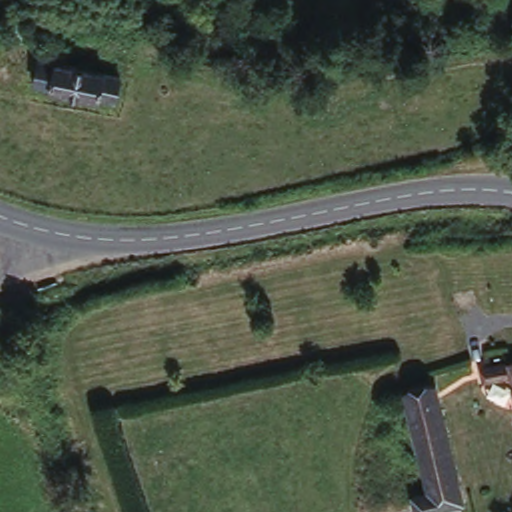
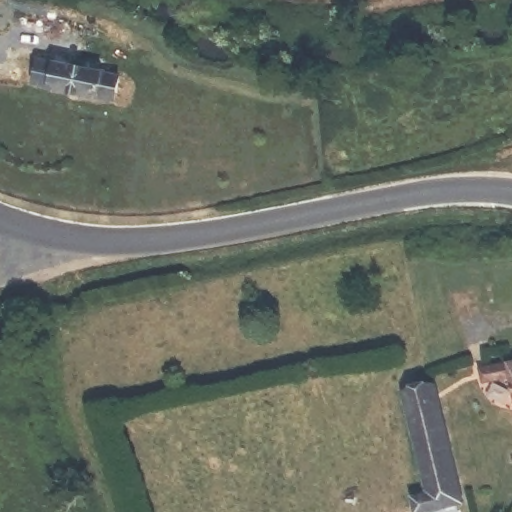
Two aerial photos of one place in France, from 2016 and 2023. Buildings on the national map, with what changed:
unchanged [(117,100),(49,92),(52,64),(122,72),(117,100)]
unchanged [(488,382),(512,375),(512,389),(492,393),(488,382)]
unchanged [(426,492),(407,396),(437,387),(462,505),(434,512),(418,512),(414,494),(426,492)]

